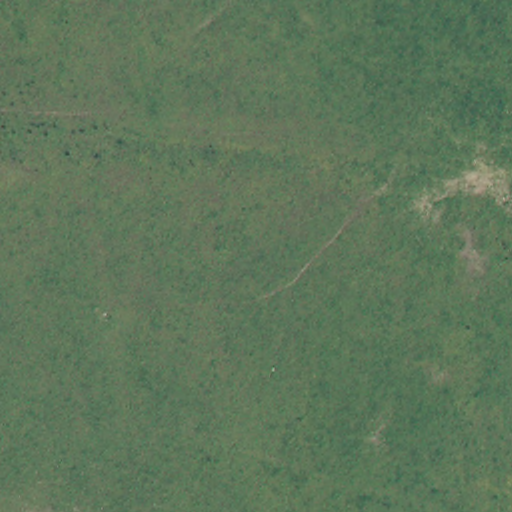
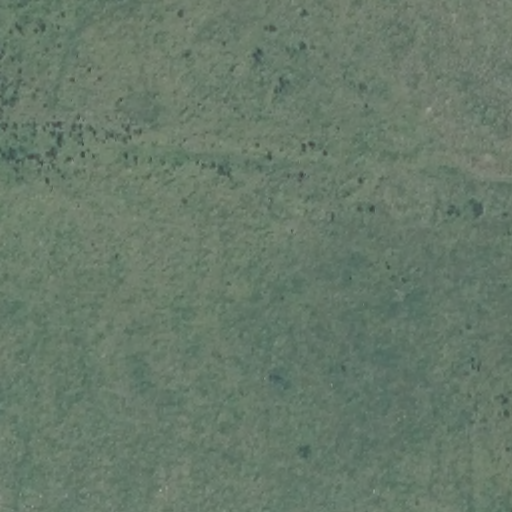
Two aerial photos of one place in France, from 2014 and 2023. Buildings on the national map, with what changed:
[]

